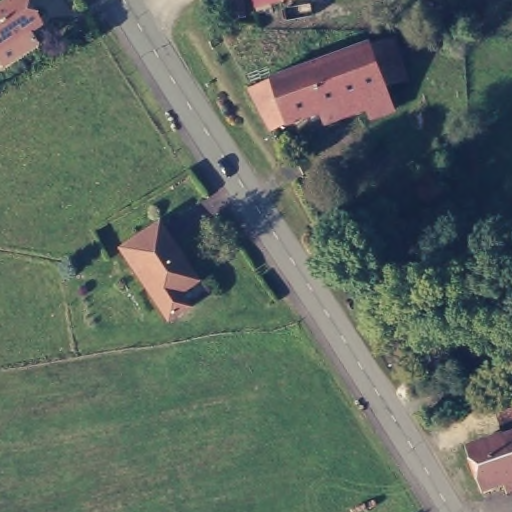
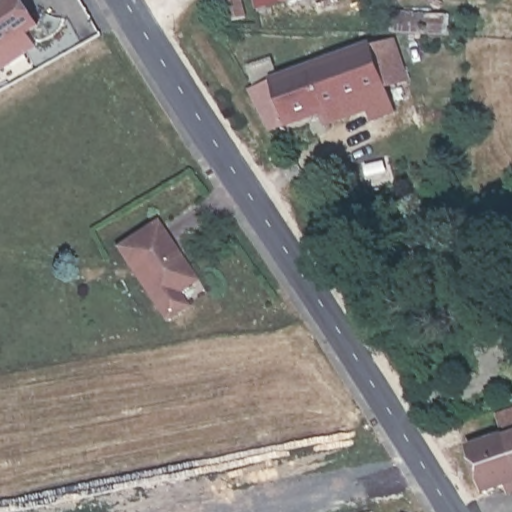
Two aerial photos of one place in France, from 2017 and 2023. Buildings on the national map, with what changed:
unchanged [(2,66),(0,62),(0,6),(9,0),(22,0),(39,25),(29,31),(36,43),(2,66)]
unchanged [(250,16),(233,20),(227,0),(245,0),(250,16)]
unchanged [(257,10),(256,0),(312,0),(257,10)]
unchanged [(389,57),(397,106),(377,109),(369,61),(389,57)]
unchanged [(377,109),(381,131),(357,136),(354,114),(257,132),(247,84),(369,61),(377,109)]
unchanged [(179,257),(172,260),(187,282),(176,289),(185,307),(164,320),(136,277),(140,275),(123,249),(158,225),(179,257)]
unchanged [(512,296),(491,300),(487,272),(512,267),(512,270),(512,296)]
unchanged [(500,420),(512,416),(512,439),(507,441),(500,420)]
unchanged [(474,452),(507,441),(512,439),(512,489),(489,497),(474,452)]

